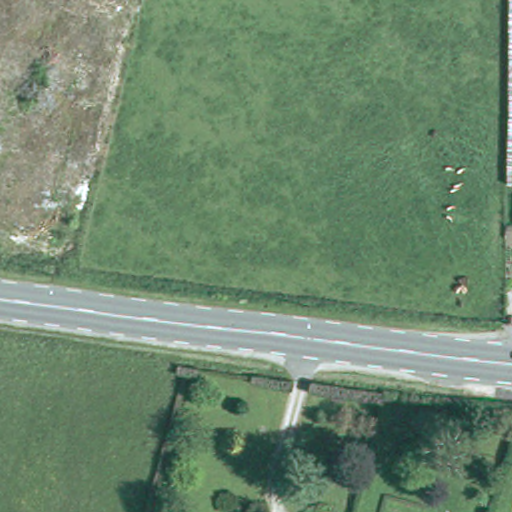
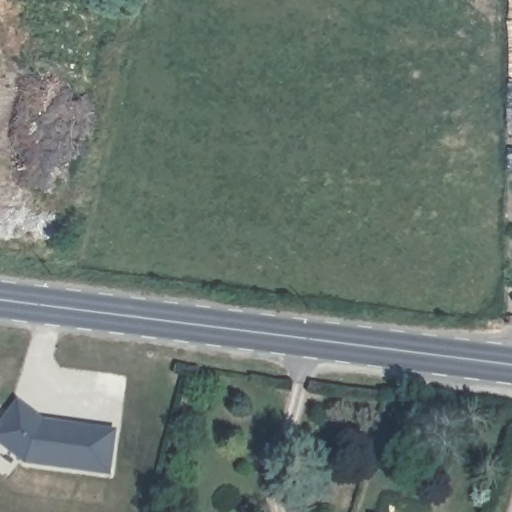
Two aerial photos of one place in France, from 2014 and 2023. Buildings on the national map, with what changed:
new [(46,418),(118,428),(112,475),(25,463),(0,443),(0,425),(19,399),(46,418)]

